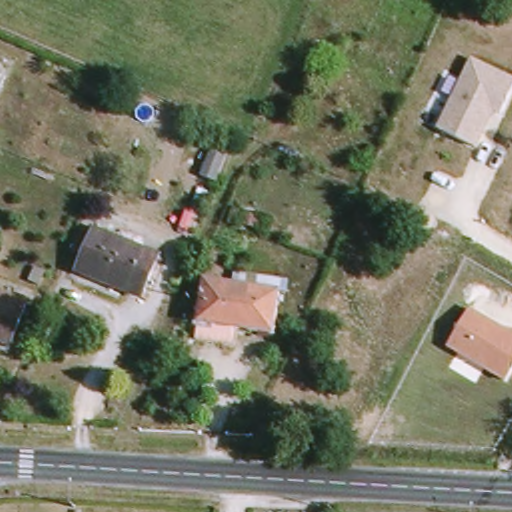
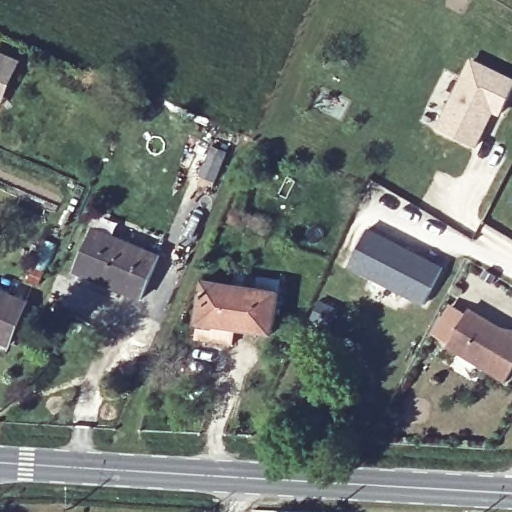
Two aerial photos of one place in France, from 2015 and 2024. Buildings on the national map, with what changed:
unchanged [(473,59),(512,76),(512,94),(505,112),(499,109),(480,148),(440,128),(473,59)]
unchanged [(205,177),(218,147),(227,150),(214,181),(205,177)]
new [(394,245),(407,251),(444,270),(425,307),(350,268),(369,232),(394,245)]
unchanged [(89,276),(105,233),(166,254),(150,296),(89,276)]
unchanged [(238,341),(202,335),(210,279),(247,285),(250,270),(290,276),(287,290),(280,332),(240,327),(238,341)]
unchanged [(0,290),(31,302),(15,345),(0,340),(0,290)]
unchanged [(512,334),(512,371),(505,383),(447,347),(470,310),(512,334)]

